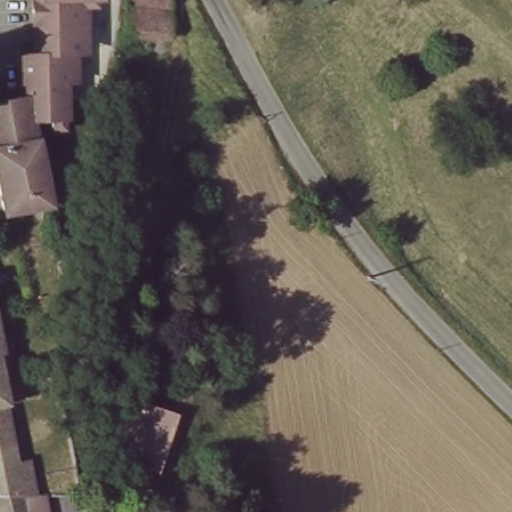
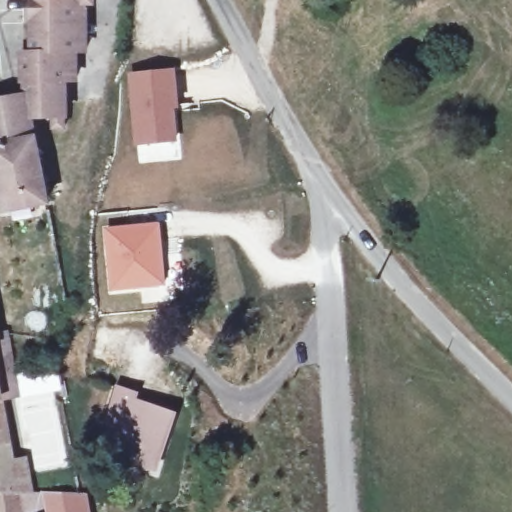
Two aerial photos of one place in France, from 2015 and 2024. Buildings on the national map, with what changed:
unchanged [(27,103),(27,102),(24,102),(26,81),(23,81),(24,50),(35,50),(36,23),(37,0),(89,0),(86,50),(86,55),(82,55),(75,55),(74,86),(65,85),(63,121),(31,119),(27,103)]
new [(135,144),(128,73),(172,69),(179,140),(135,144)]
unchanged [(50,205),(4,215),(0,196),(0,107),(22,103),(24,102),(27,102),(27,103),(31,119),(32,126),(48,197),(50,205)]
new [(165,286),(110,289),(105,228),(160,223),(165,286)]
unchanged [(12,366),(18,392),(0,395),(0,328),(4,327),(12,366)]
unchanged [(89,375),(86,396),(73,394),(77,373),(89,375)]
unchanged [(13,471),(16,487),(20,512),(0,512),(0,395),(11,457),(13,471)]
unchanged [(140,403),(138,411),(176,423),(158,476),(121,464),(129,438),(112,433),(123,397),(140,403)]
unchanged [(31,489),(36,489),(41,512),(20,512),(16,487),(13,471),(11,457),(24,456),(31,489)]

